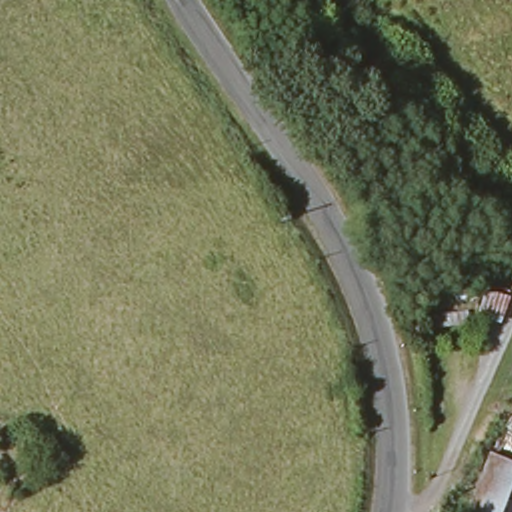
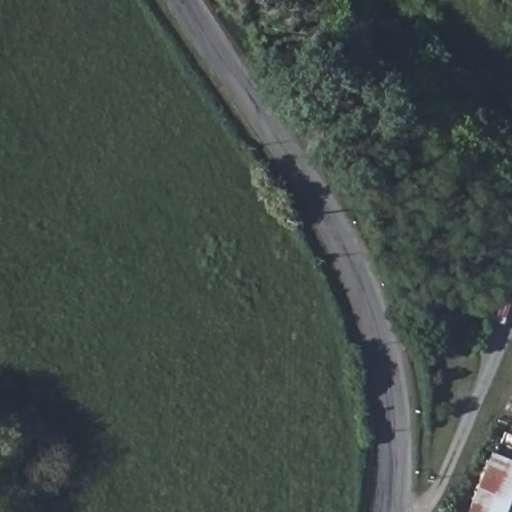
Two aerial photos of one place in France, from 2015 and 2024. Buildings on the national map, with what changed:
unchanged [(493,512),(459,512),(484,449),(512,461),(512,465),(493,512)]

